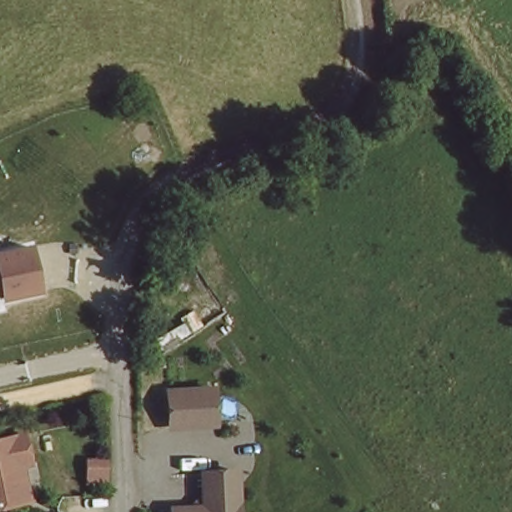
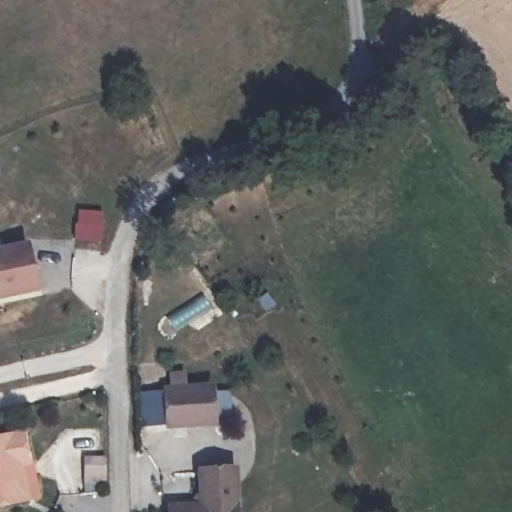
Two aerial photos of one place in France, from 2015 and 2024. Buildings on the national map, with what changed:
unchanged [(26,259),(35,303),(0,309),(0,264),(26,259)]
unchanged [(157,380),(219,375),(220,415),(160,421),(157,380)]
unchanged [(15,483),(0,486),(0,418),(17,415),(24,445),(18,447),(26,480),(15,483)]
unchanged [(193,496),(193,455),(236,456),(238,512),(169,512),(168,497),(193,496)]

